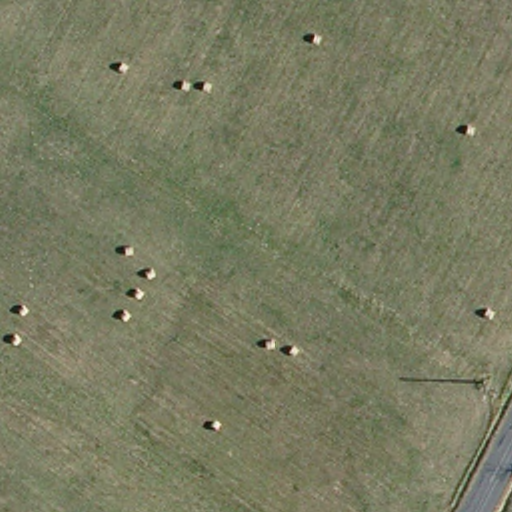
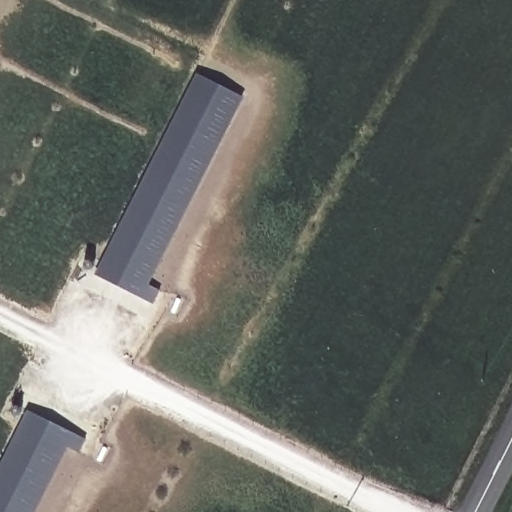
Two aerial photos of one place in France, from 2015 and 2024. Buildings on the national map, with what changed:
new [(199,75),(242,96),(149,285),(162,292),(156,305),(100,277),(199,75)]
new [(89,438),(82,452),(69,445),(36,512),(0,512),(0,474),(32,410),(89,438)]

